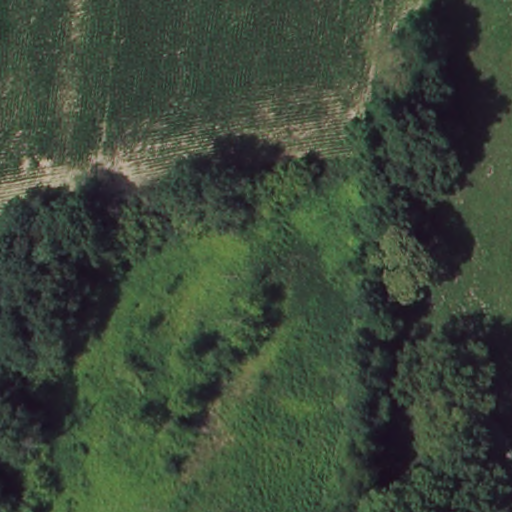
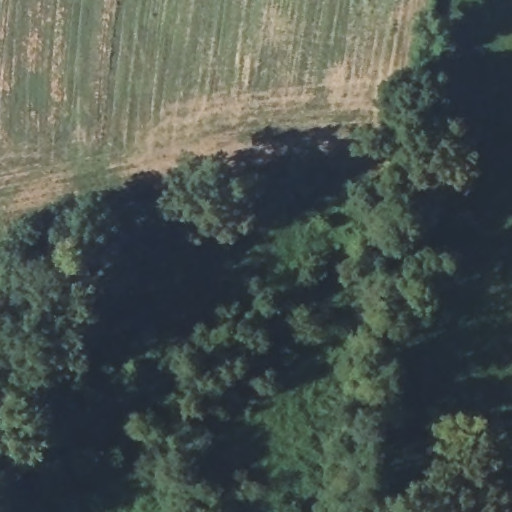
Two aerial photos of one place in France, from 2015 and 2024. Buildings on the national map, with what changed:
[]

